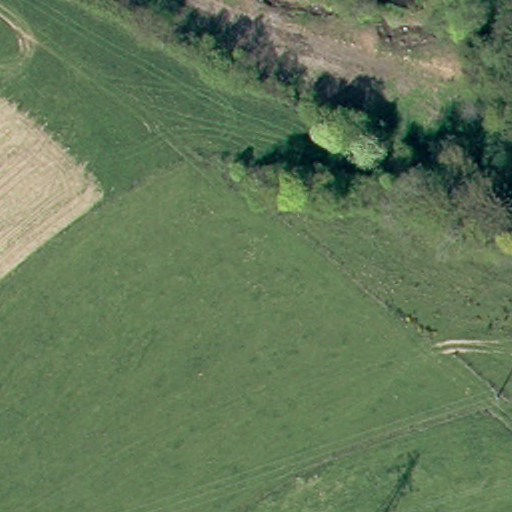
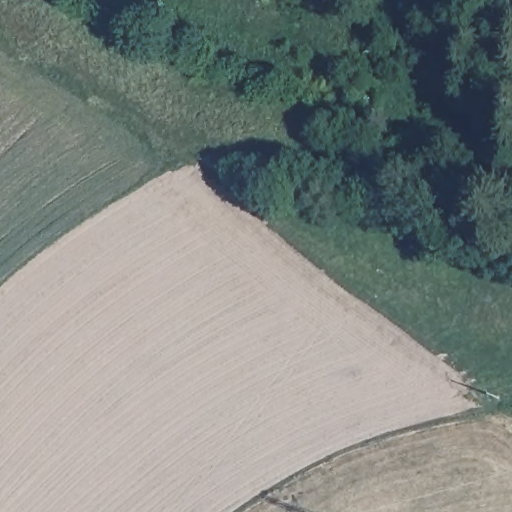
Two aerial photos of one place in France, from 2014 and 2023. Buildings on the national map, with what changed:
[]

